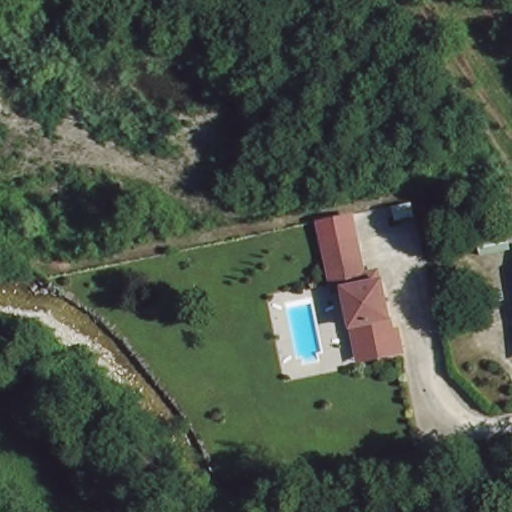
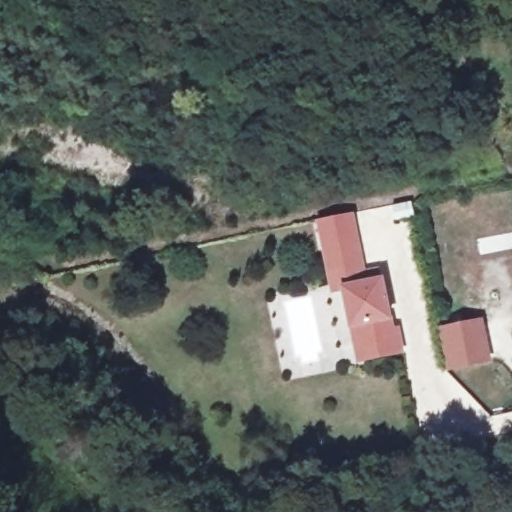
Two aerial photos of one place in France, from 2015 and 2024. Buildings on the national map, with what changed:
unchanged [(362,287),(378,284),(388,334),(393,333),(397,355),(371,360),(365,325),(347,328),(338,282),(329,284),(322,248),(354,242),(362,287)]
new [(483,317),(492,364),(446,373),(437,327),(483,317)]

